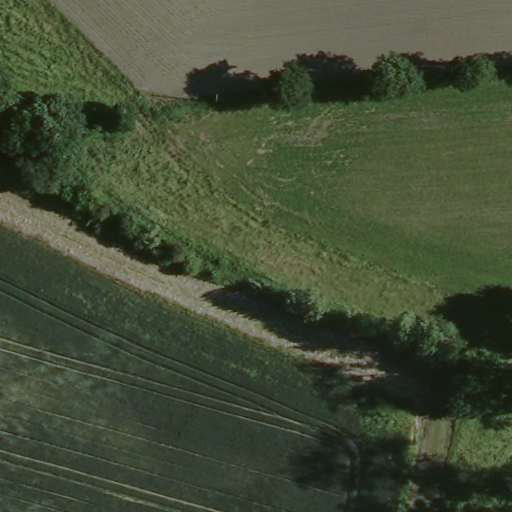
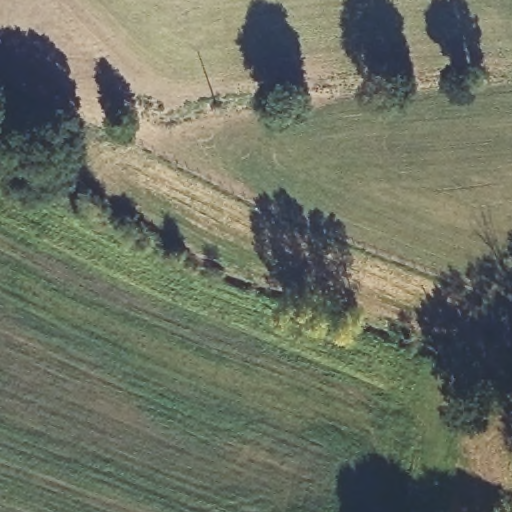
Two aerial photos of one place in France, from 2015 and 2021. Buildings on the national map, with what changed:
[]

